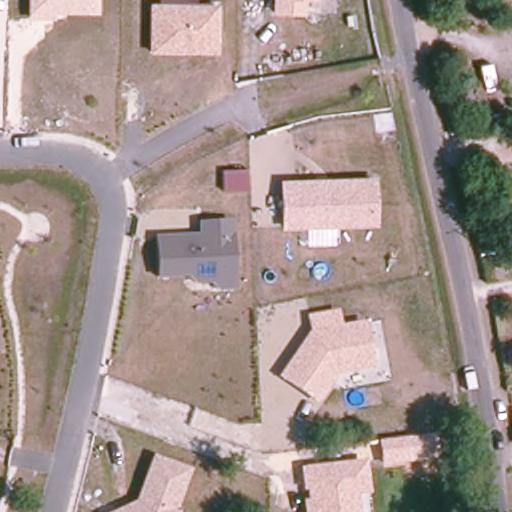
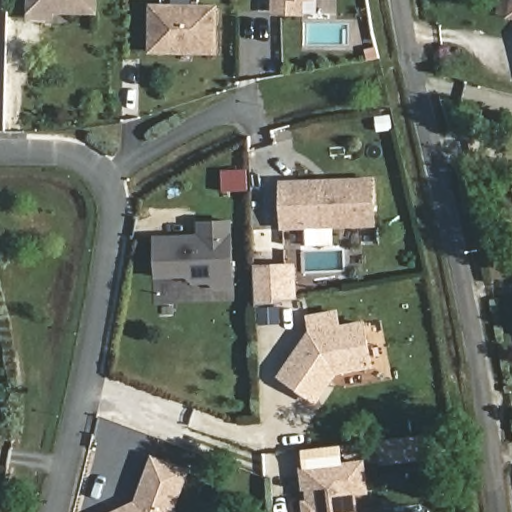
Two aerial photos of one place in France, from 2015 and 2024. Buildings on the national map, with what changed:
unchanged [(98,15),(55,14),(54,20),(26,19),(27,0),(99,0),(98,15)]
unchanged [(305,0),(304,14),(272,14),(273,0),(318,0),(305,0)]
unchanged [(149,54),(149,4),(218,4),(216,54),(149,54)]
unchanged [(282,229),(280,180),(375,176),(376,226),(282,229)]
unchanged [(156,236),(198,233),(199,219),(234,217),(234,290),(217,289),(217,282),(193,283),(193,276),(157,278),(156,236)]
new [(295,268),(296,297),(259,304),(258,270),(295,268)]
unchanged [(341,327),(365,322),(374,366),(338,373),(315,401),(282,375),(311,333),(309,315),(336,311),(341,327)]
unchanged [(382,466),(378,440),(446,433),(449,458),(382,466)]
unchanged [(191,468),(177,510),(179,512),(110,512),(134,500),(151,455),(191,468)]
unchanged [(357,496),(360,512),(304,512),(299,467),(366,459),(371,495),(357,496)]

